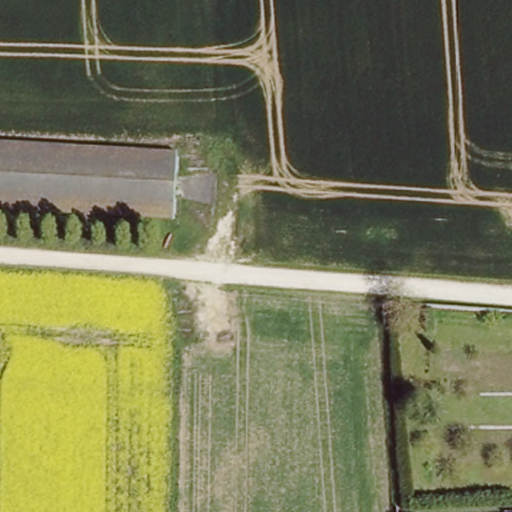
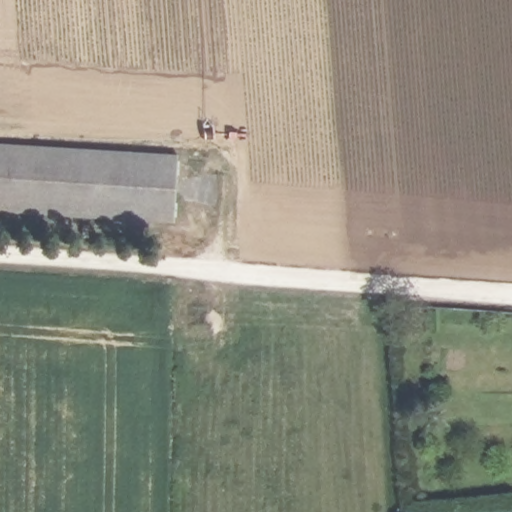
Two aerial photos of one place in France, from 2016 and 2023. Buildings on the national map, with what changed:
unchanged [(178,160),(174,226),(0,213),(0,147),(178,160)]

